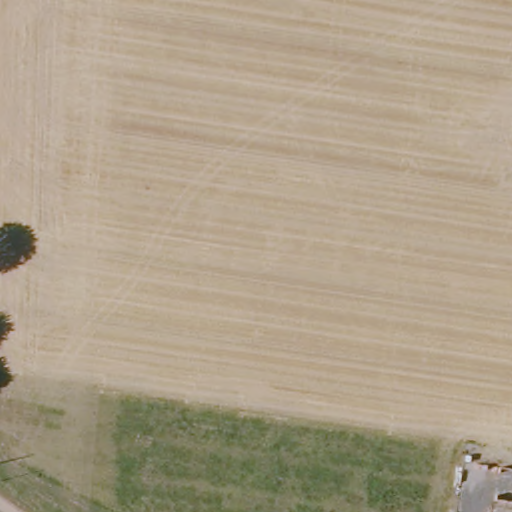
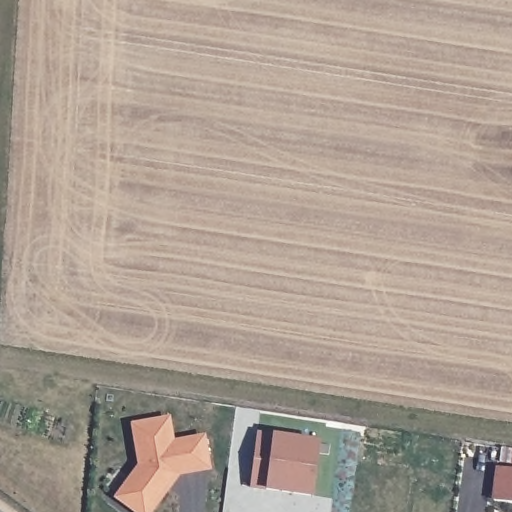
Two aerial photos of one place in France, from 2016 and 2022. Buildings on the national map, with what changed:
new [(154,512),(134,512),(115,497),(139,464),(132,424),(172,416),(176,440),(207,435),(212,469),(180,475),(154,512)]
new [(257,431),(274,435),(321,441),(313,498),(265,490),(250,486),(257,431)]
new [(492,501),(495,466),(512,469),(512,504),(492,501)]

